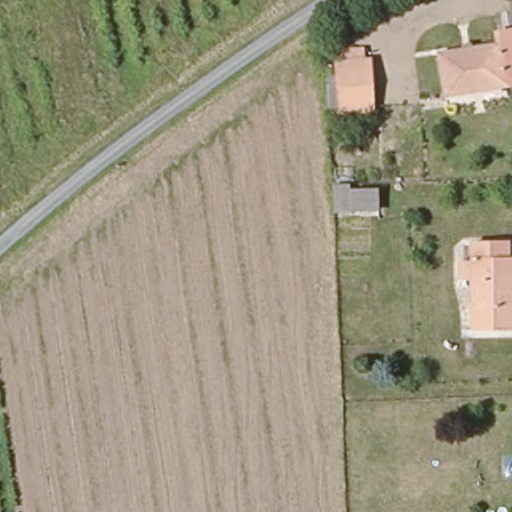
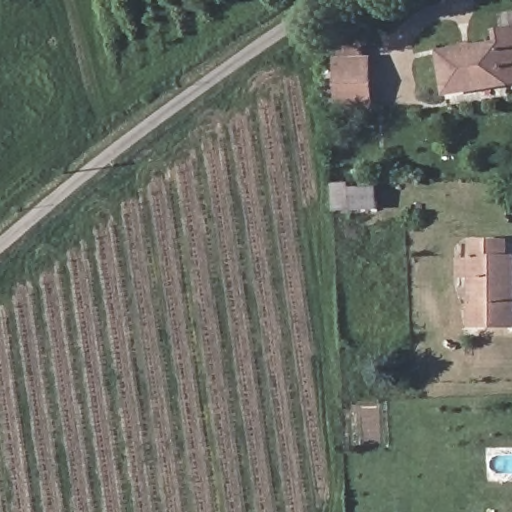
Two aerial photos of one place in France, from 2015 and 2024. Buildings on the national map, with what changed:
unchanged [(494,44),(492,30),(512,28),(512,81),(441,92),(435,52),(494,44)]
unchanged [(333,119),(331,55),(371,53),(375,117),(333,119)]
unchanged [(350,191),(350,199),(380,197),(380,220),(334,221),(333,191),(350,191)]
unchanged [(499,244),(500,260),(508,260),(508,269),(510,327),(468,328),(467,277),(454,278),(453,262),(467,262),(466,245),(499,244)]

